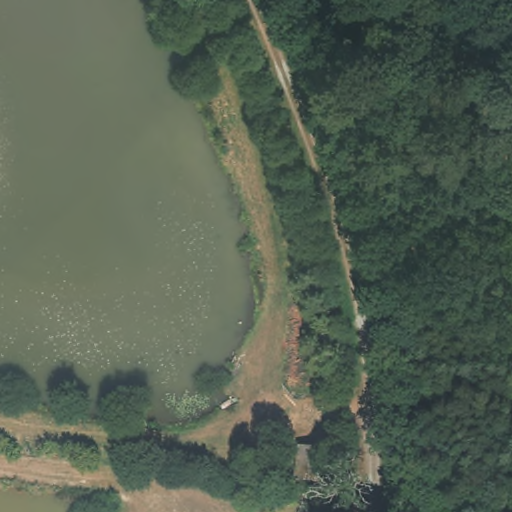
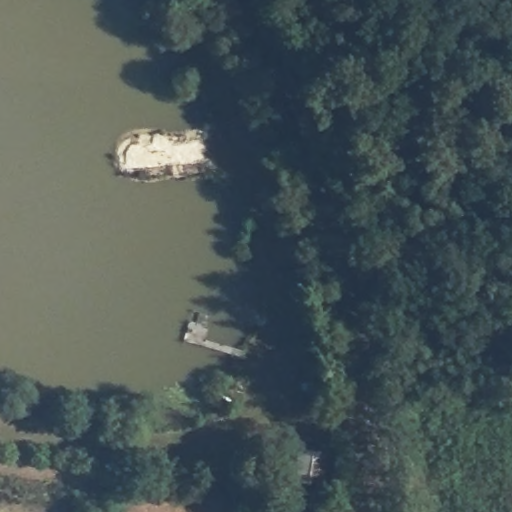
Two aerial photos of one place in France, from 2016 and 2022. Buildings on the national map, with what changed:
unchanged [(326,457),(321,488),(297,484),(302,453),(326,457)]

